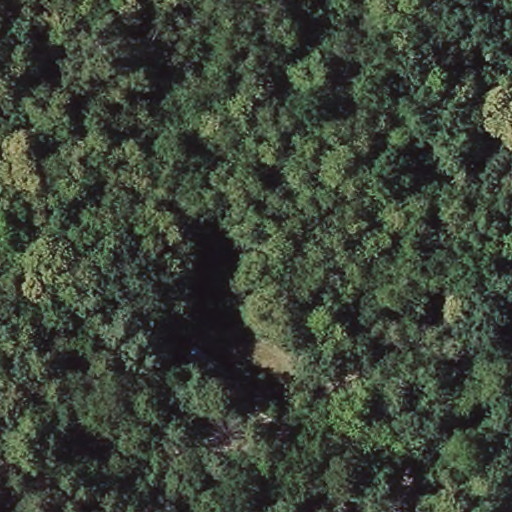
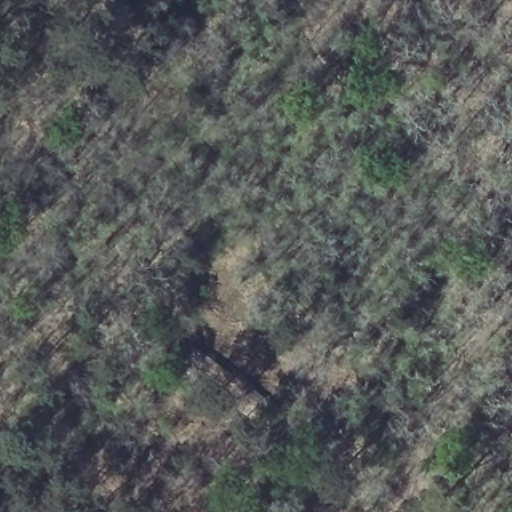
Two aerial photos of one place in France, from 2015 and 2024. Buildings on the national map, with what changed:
unchanged [(152,297),(170,312),(162,322),(144,307),(152,297)]
unchanged [(267,417),(184,357),(195,341),(278,401),(267,417)]

